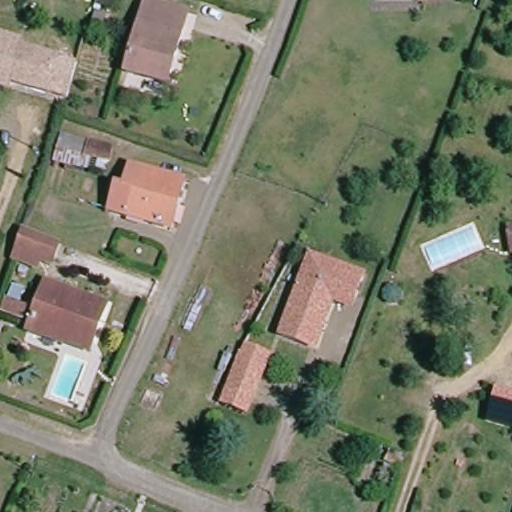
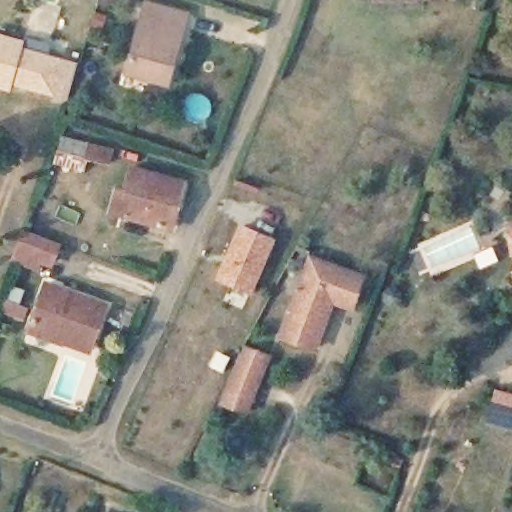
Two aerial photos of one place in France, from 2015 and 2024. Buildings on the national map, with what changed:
unchanged [(145,2),(186,15),(167,85),(124,74),(145,2)]
unchanged [(70,99),(56,95),(14,83),(12,90),(0,86),(0,34),(26,42),(24,49),(67,60),(80,65),(70,99)]
unchanged [(110,150),(106,165),(90,160),(88,171),(54,162),(60,137),(110,150)]
unchanged [(129,168),(182,184),(169,229),(109,212),(115,189),(122,191),(129,168)]
new [(239,223),(275,237),(252,292),(216,278),(239,223)]
unchanged [(48,242),(39,265),(19,257),(27,234),(48,242)]
unchanged [(308,252),(362,272),(350,304),(331,297),(314,342),(279,330),(308,252)]
unchanged [(61,343),(62,340),(28,327),(32,317),(45,284),(105,307),(95,335),(91,346),(88,355),(61,343)]
unchanged [(235,357),(241,359),(246,341),(272,355),(247,418),(219,400),(235,357)]

